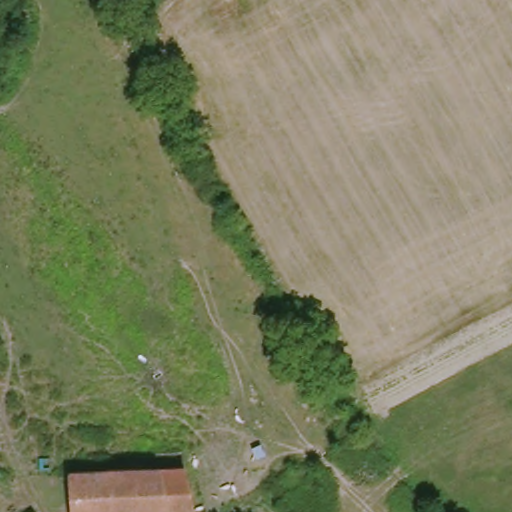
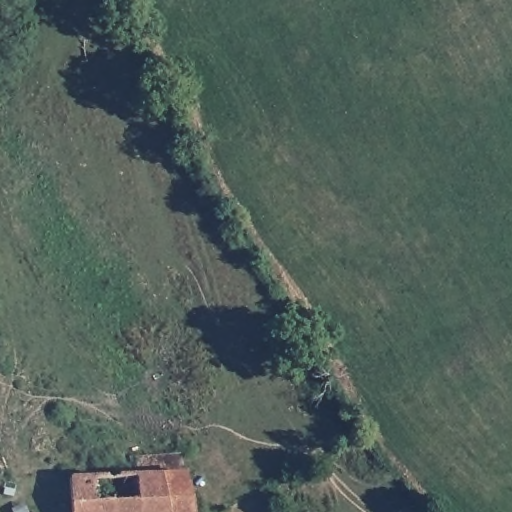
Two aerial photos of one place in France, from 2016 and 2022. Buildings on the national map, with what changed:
unchanged [(184,473),(192,512),(75,512),(69,477),(184,473)]

